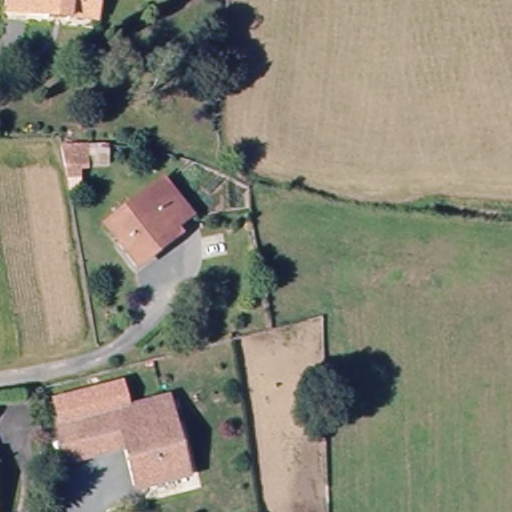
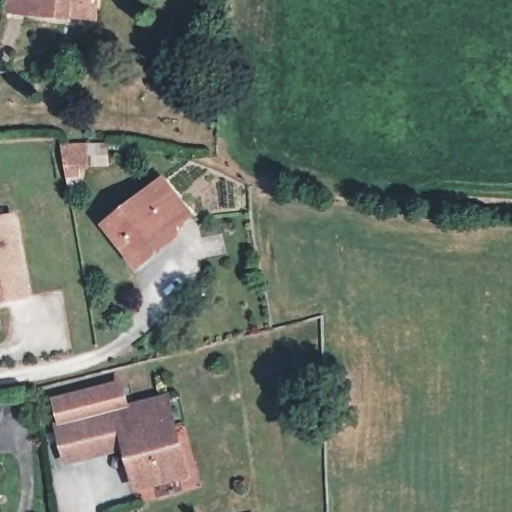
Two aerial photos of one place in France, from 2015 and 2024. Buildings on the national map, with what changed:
unchanged [(7,0),(94,0),(92,10),(92,19),(66,16),(6,10),(7,0)]
unchanged [(109,144),(110,169),(90,169),(90,171),(81,171),(82,192),(69,193),(61,145),(109,144)]
unchanged [(172,234),(131,261),(104,222),(164,183),(186,216),(190,221),(172,234)]
new [(32,300),(0,307),(0,217),(17,214),(32,300)]
unchanged [(69,427),(77,461),(62,465),(54,425),(57,424),(51,398),(124,380),(132,411),(69,427)]
unchanged [(147,484),(136,441),(98,450),(100,456),(77,461),(69,427),(156,406),(175,400),(180,420),(192,473),(147,484)]

